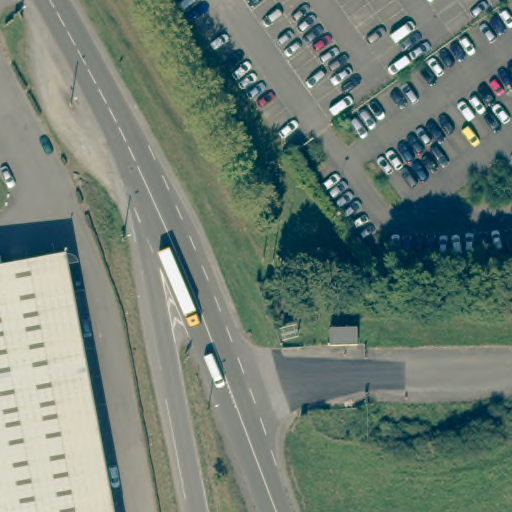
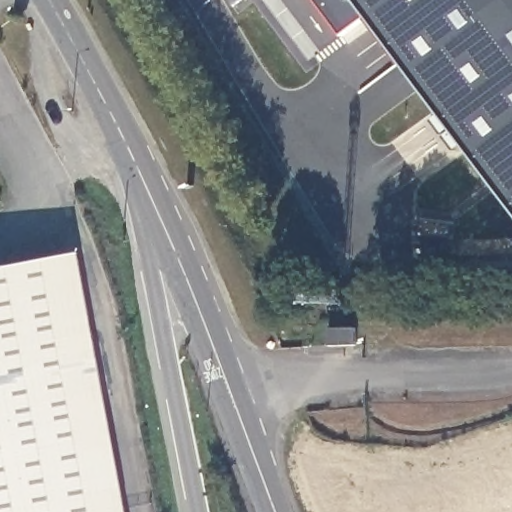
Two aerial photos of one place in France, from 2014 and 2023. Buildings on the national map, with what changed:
new [(373,14),(343,36),(315,0),(512,0),(512,201),(373,14)]
unchanged [(113,512),(0,512),(0,264),(63,252),(113,512)]
unchanged [(351,327),(351,342),(324,342),(324,327),(351,327)]

